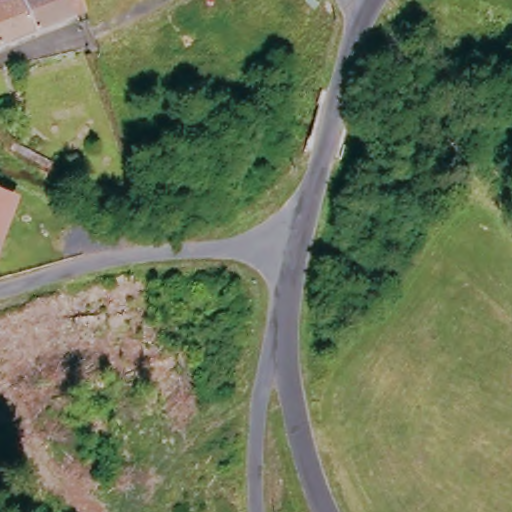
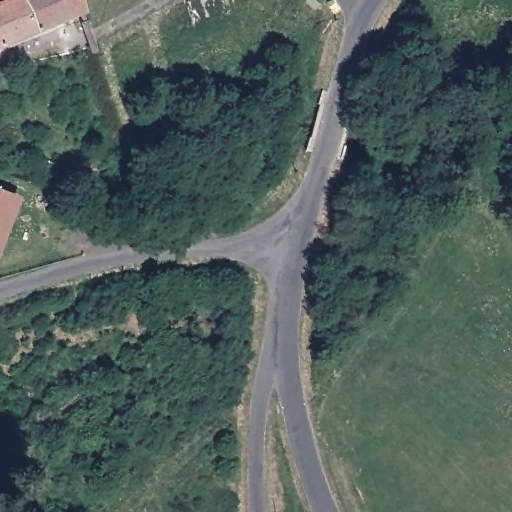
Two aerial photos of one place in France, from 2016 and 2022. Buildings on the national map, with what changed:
unchanged [(0,51),(0,0),(74,0),(80,18),(0,51)]
unchanged [(0,229),(0,196),(10,200),(0,229)]

